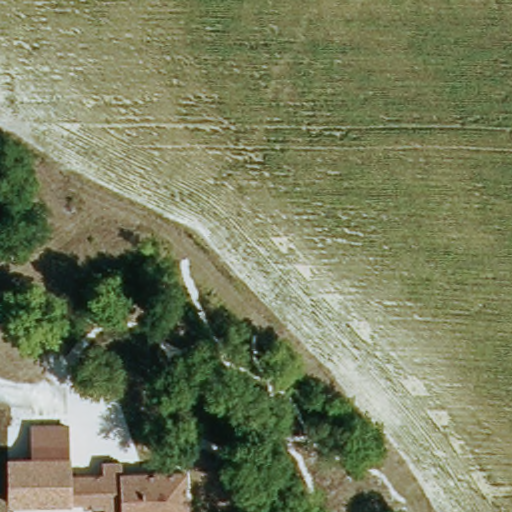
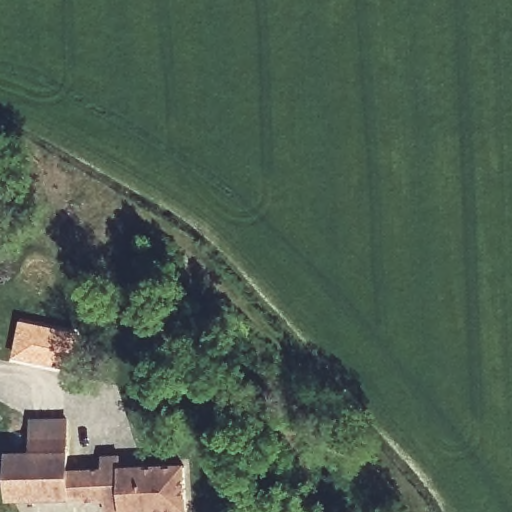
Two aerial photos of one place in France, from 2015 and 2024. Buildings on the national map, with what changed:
new [(19,319),(79,331),(69,370),(11,358),(19,319)]
unchanged [(6,455),(30,454),(28,417),(64,416),(65,452),(84,452),(84,465),(107,465),(108,471),(183,466),(184,512),(125,512),(124,497),(8,500),(6,455)]

